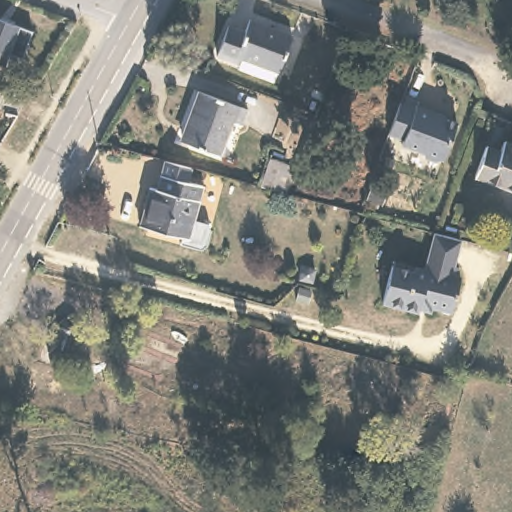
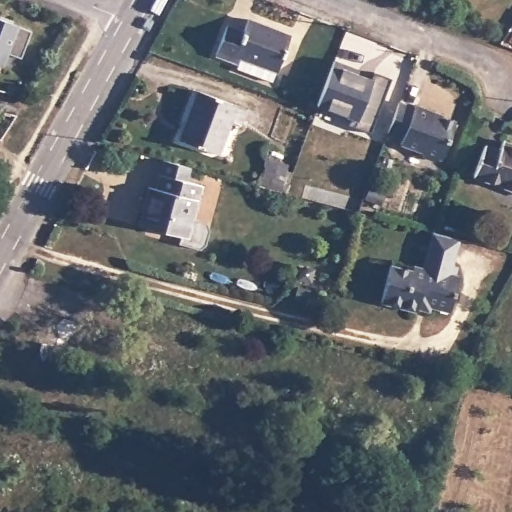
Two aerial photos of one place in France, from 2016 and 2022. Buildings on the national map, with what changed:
unchanged [(241,66),(244,60),(220,51),(232,21),(248,28),(253,15),(295,31),(281,67),(277,79),(241,66)]
unchanged [(4,53),(0,63),(0,21),(29,32),(18,58),(4,53)]
new [(335,61),(358,70),(357,74),(372,79),(375,71),(392,78),(371,133),(349,125),(351,119),(317,106),(335,61)]
unchanged [(247,109),(241,125),(231,122),(219,155),(179,141),(197,91),(247,109)]
unchanged [(412,161),(381,150),(396,110),(410,115),(413,109),(450,122),(435,165),(433,170),(412,161)]
unchanged [(512,192),(474,177),(486,146),(500,151),(503,142),(512,145),(512,192)]
unchanged [(285,194),(279,192),(260,187),(268,158),(283,162),(288,164),(286,172),(293,174),(285,194)]
unchanged [(200,182),(196,196),(191,195),(186,213),(205,219),(208,226),(205,235),(203,235),(199,238),(138,222),(149,183),(155,185),(159,171),(200,182)]
unchanged [(388,268),(410,272),(411,267),(421,269),(428,231),(455,238),(448,274),(457,276),(451,311),(420,305),(418,313),(381,306),(388,268)]

